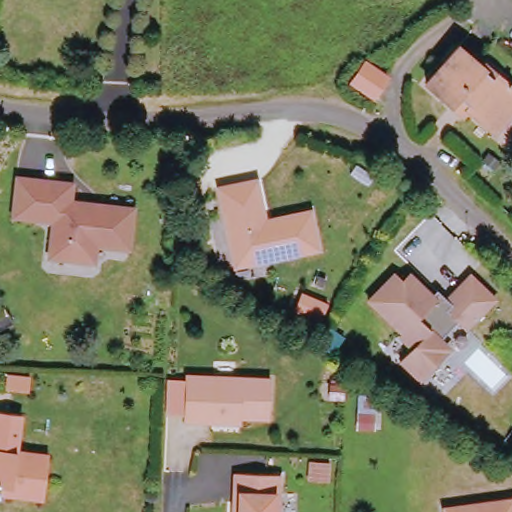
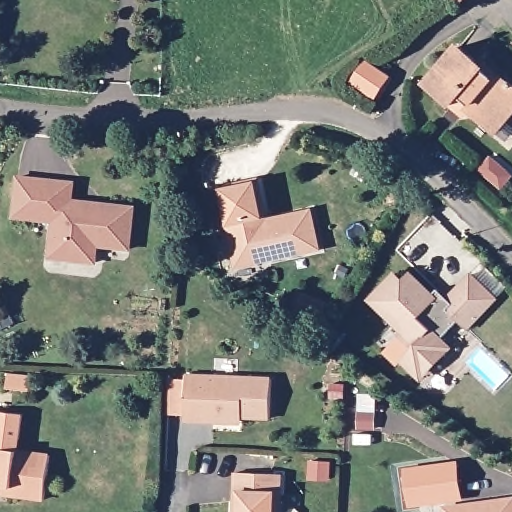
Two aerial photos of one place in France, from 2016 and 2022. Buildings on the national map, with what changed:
unchanged [(477,117),(480,114),(470,105),(462,112),(437,90),(467,54),(494,74),(487,85),(500,98),(511,86),(512,87),(512,137),(507,142),(477,117)]
unchanged [(264,212),(266,219),(311,209),(320,246),(238,267),(220,189),(256,179),(264,212)]
unchanged [(52,244),(52,243),(54,225),(35,224),(38,184),(60,185),(73,187),(71,204),(87,206),(99,207),(135,210),(130,252),(98,249),(96,265),(63,263),(50,262),(52,244)]
unchanged [(496,301),(467,332),(458,323),(442,340),(445,344),(445,355),(426,374),(415,374),(401,362),(413,349),(400,337),(403,334),(370,302),(395,276),(403,284),(410,275),(433,297),(438,292),(448,301),(471,277),(496,301)]
unchanged [(228,424),(186,423),(188,377),(273,379),(272,419),(245,419),(243,424),(228,424)]
unchanged [(0,486),(0,411),(25,414),(22,439),(16,444),(15,450),(30,452),(53,454),(49,498),(24,496),(15,494),(6,494),(7,487),(0,486)]
new [(465,501),(410,509),(405,469),(459,462),(465,501)]
unchanged [(238,474),(270,475),(283,476),(282,512),(237,512),(238,474)]
unchanged [(447,512),(512,502),(512,512),(448,512),(447,512)]

